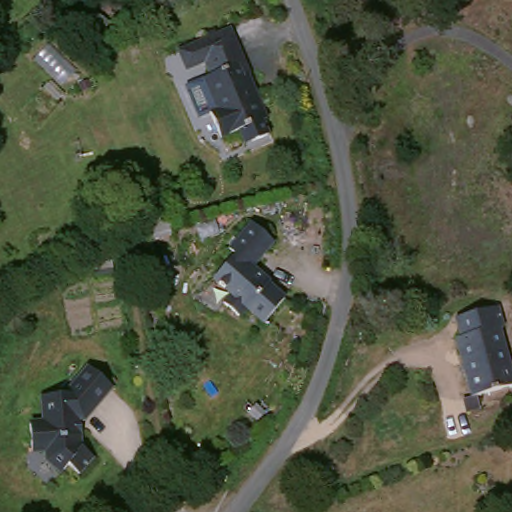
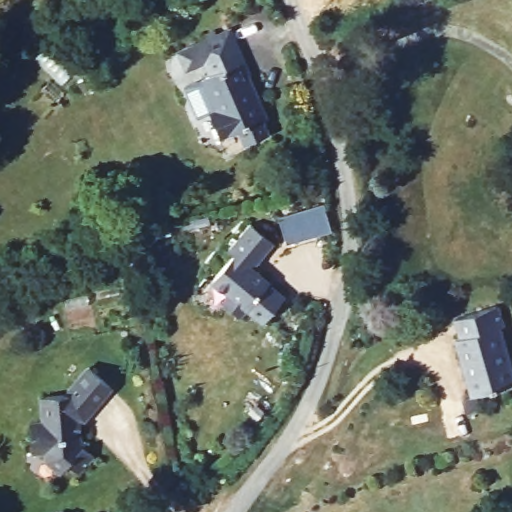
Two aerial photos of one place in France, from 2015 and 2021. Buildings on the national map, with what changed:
unchanged [(248,65),(241,68),(246,80),(252,77),(268,119),(223,137),(213,112),(219,110),(206,79),(213,76),(206,62),(188,70),(181,51),(199,45),(234,30),(248,65)]
new [(322,208),(328,232),(286,243),(279,219),(322,208)]
unchanged [(272,239),(251,265),(268,280),(266,281),(283,295),(263,320),(246,305),(238,315),(221,300),(229,291),(211,276),(233,251),(226,247),(249,220),(272,239)]
unchanged [(512,367),(512,385),(476,396),(459,338),(464,337),(459,318),(501,306),(507,326),(501,328),(512,367)]
unchanged [(96,368),(118,388),(88,420),(81,420),(83,443),(98,457),(83,474),(73,464),(66,471),(53,459),(52,449),(36,450),(35,423),(51,422),(49,395),(76,394),(75,390),(96,368)]

